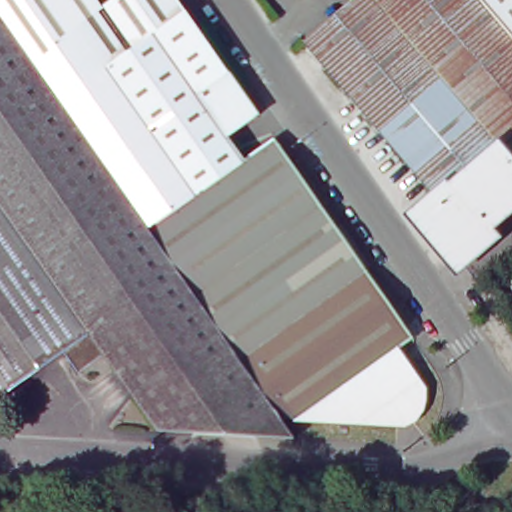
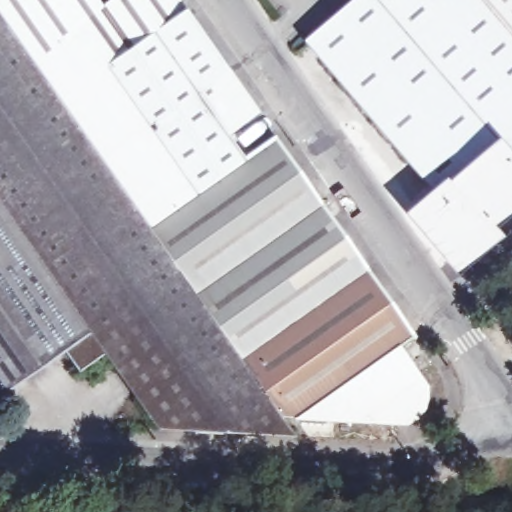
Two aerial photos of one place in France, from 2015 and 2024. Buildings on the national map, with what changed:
unchanged [(102,11),(119,0),(176,0),(258,118),(228,140),(245,165),(261,154),(276,143),(415,340),(398,353),(420,383),(423,390),(425,396),(425,402),(424,406),(420,413),(416,416),(413,420),(410,422),(405,424),(400,425),(392,425),(283,421),(287,426),(298,442),(161,435),(100,349),(98,351),(105,359),(99,363),(94,355),(85,361),(75,348),(4,397),(7,401),(3,404),(0,399),(0,0),(94,0),(102,11)]
unchanged [(512,219),(465,259),(424,213),(445,195),(315,42),(367,0),(512,0),(512,219)]

